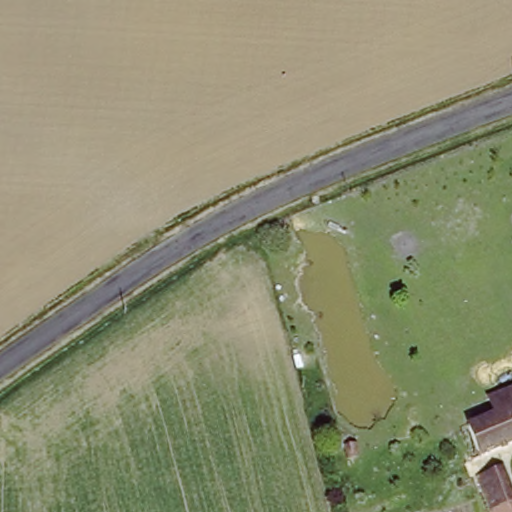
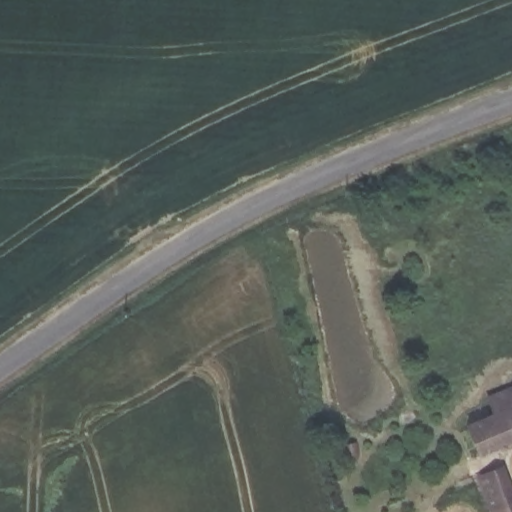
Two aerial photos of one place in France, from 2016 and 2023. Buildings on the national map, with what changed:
unchanged [(481,457),(469,430),(506,413),(500,397),(512,392),(512,444),(481,457)]
unchanged [(502,464),(512,487),(512,512),(489,512),(475,477),(502,464)]

